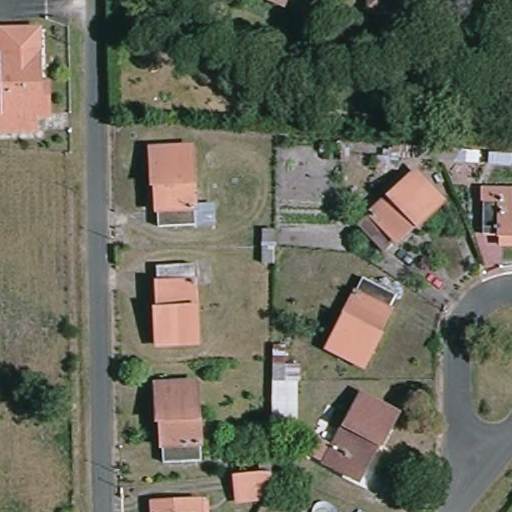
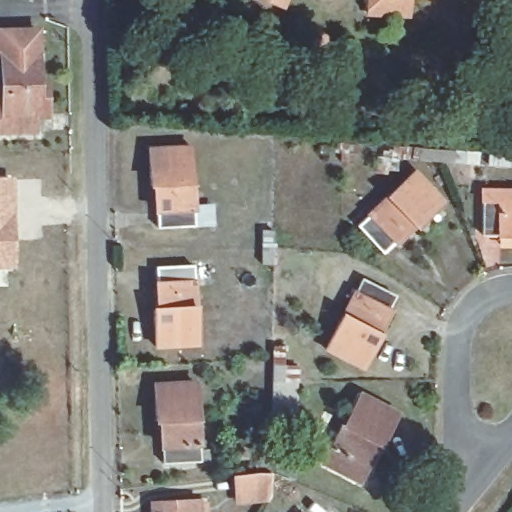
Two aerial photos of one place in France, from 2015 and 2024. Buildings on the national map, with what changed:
unchanged [(270,0),(279,0),(277,3),(270,0)]
unchanged [(304,3),(304,0),(330,0),(330,5),(304,3)]
unchanged [(363,8),(363,0),(377,0),(377,9),(363,8)]
unchanged [(31,85),(38,85),(40,114),(33,114),(27,114),(28,132),(2,133),(0,133),(0,31),(29,29),(31,85)]
unchanged [(181,145),(187,207),(195,207),(195,214),(189,214),(189,222),(155,225),(150,184),(144,185),(141,149),(181,145)]
unchanged [(438,159),(421,158),(421,151),(422,145),(456,149),(456,155),(455,162),(438,159)]
unchanged [(360,200),(362,206),(414,171),(436,205),(406,227),(403,223),(370,244),(350,215),(356,211),(352,205),(360,200)]
new [(0,176),(14,176),(15,269),(0,269),(0,176)]
unchanged [(495,191),(495,198),(512,198),(512,235),(481,234),(480,198),(486,198),(486,191),(495,191)]
unchanged [(277,258),(265,258),(265,242),(265,228),(276,228),(277,243),(277,244),(277,258)]
unchanged [(185,263),(185,269),(191,269),(192,279),(186,279),(190,342),(149,344),(146,308),(151,308),(149,264),(185,263)]
unchanged [(385,294),(366,332),(373,336),(355,368),(318,348),(348,291),(342,287),(345,281),(351,284),(355,278),(385,294)]
unchanged [(279,418),(278,380),(278,362),(279,362),(287,362),(288,379),(291,418),(279,418)]
unchanged [(188,381),(192,443),(199,443),(200,449),(194,450),(194,458),(159,459),(155,419),(150,419),(148,382),(188,381)]
unchanged [(391,415),(375,444),(370,442),(347,481),(318,464),(322,457),(317,454),(321,447),(325,449),(357,395),(391,415)]
unchanged [(236,493),(236,477),(253,475),(253,459),(265,458),(265,474),(265,502),(247,503),(236,503),(236,493)]
unchanged [(148,502),(160,502),(195,499),(195,506),(200,506),(200,512),(149,512),(148,502)]
unchanged [(298,512),(296,512),(297,511),(298,512)]

